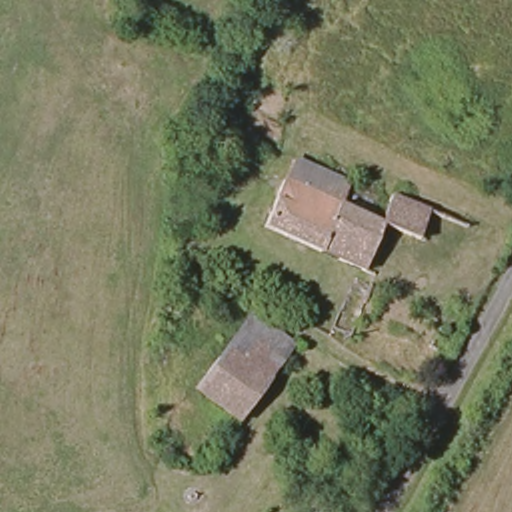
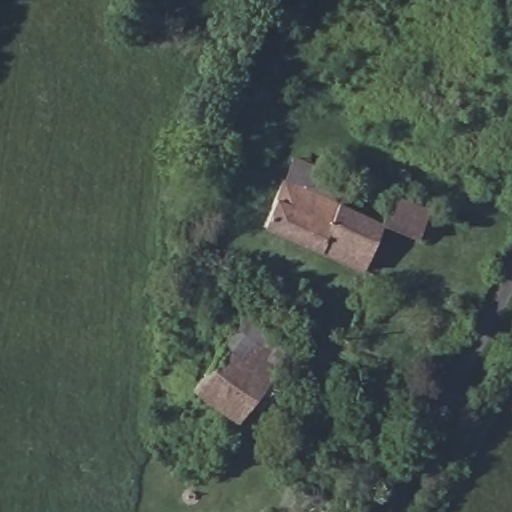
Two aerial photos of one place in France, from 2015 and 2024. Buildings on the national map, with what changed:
unchanged [(351,182),(342,205),(284,181),(294,158),(351,182)]
unchanged [(284,181),(342,205),(383,222),(363,268),(265,225),(284,181)]
unchanged [(396,192),(433,209),(421,238),(383,222),(396,192)]
unchanged [(294,342),(236,421),(193,388),(252,311),(294,342)]

